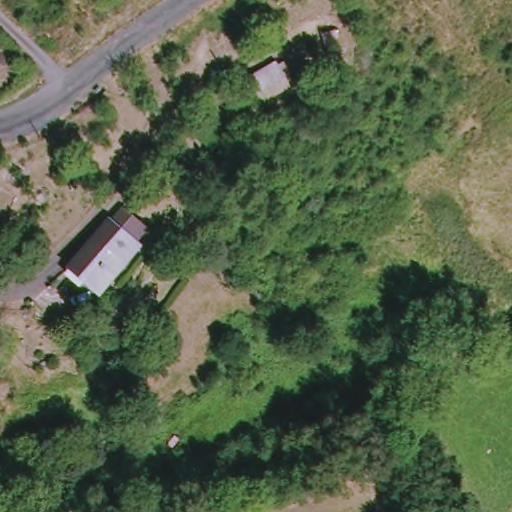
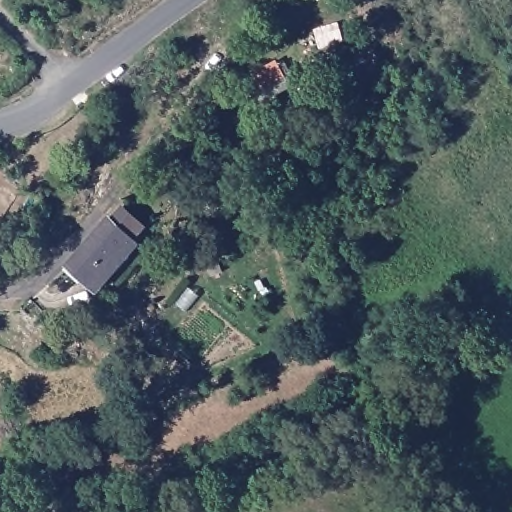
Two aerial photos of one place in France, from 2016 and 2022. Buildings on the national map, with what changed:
unchanged [(300,91),(267,110),(250,75),(283,56),(300,91)]
unchanged [(108,218),(137,244),(98,288),(70,263),(108,218)]

